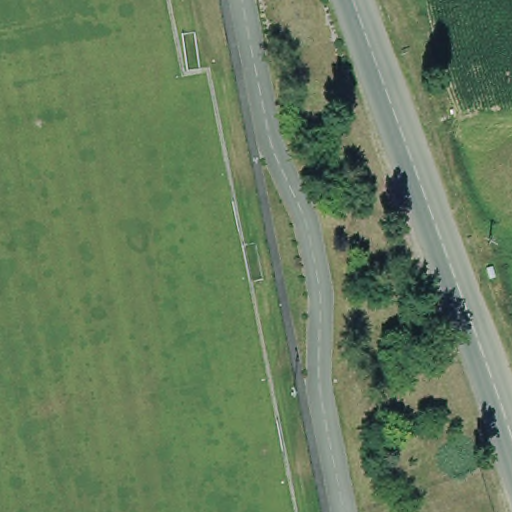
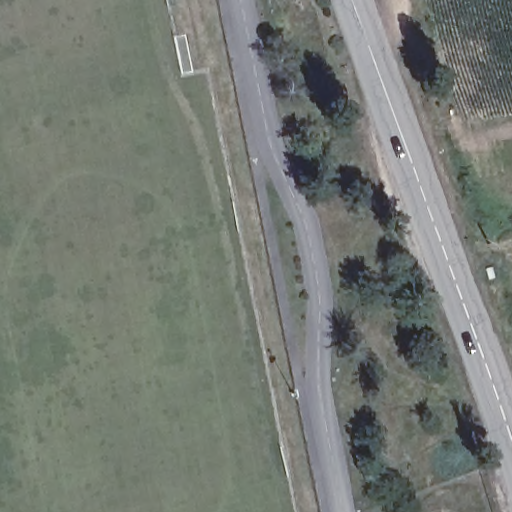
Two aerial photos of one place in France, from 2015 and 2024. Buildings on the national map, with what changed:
unchanged [(495,268),(497,281),(490,282),(487,270),(495,268)]

